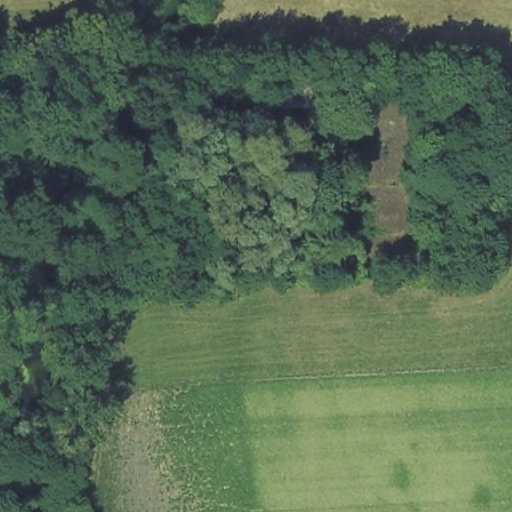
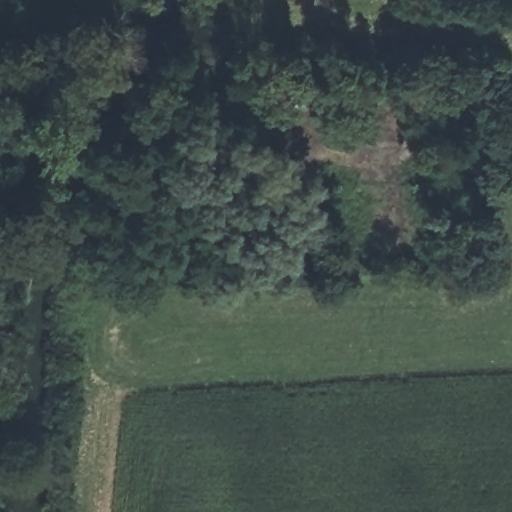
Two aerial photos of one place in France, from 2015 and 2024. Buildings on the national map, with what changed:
unchanged [(306,83),(306,120),(274,116),(274,83),(306,83)]

